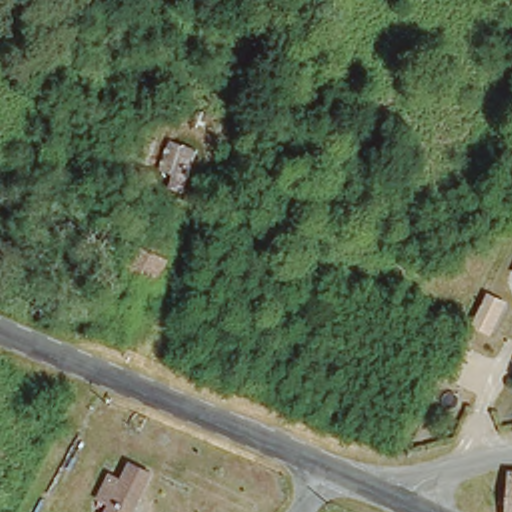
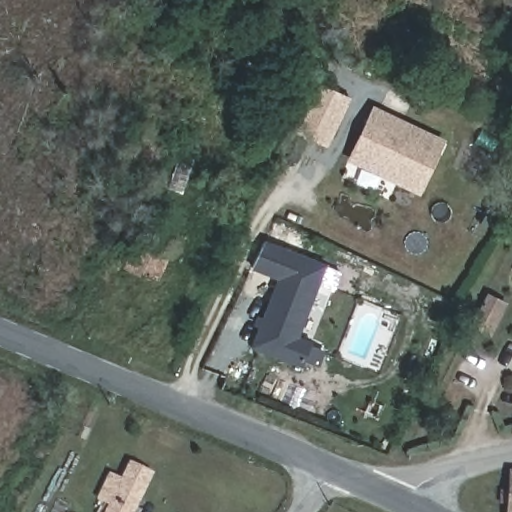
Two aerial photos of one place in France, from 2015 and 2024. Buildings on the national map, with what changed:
new [(334,69),(361,82),(328,150),(300,137),(334,69)]
new [(346,161),(371,106),(444,139),(419,195),(346,161)]
unchanged [(181,190),(155,182),(168,140),(196,148),(181,190)]
unchanged [(113,288),(126,260),(134,262),(144,243),(175,256),(152,305),(113,288)]
new [(253,324),(256,315),(260,317),(278,277),(317,291),(299,337),(312,342),(302,369),(249,347),(257,328),(253,324)]
demolished [(127,355),(96,341),(107,317),(102,314),(113,288),(152,305),(127,355)]
demolished [(132,423),(127,436),(112,430),(115,416),(132,423)]
unchanged [(133,512),(89,512),(112,466),(127,473),(130,466),(151,475),(133,512)]

